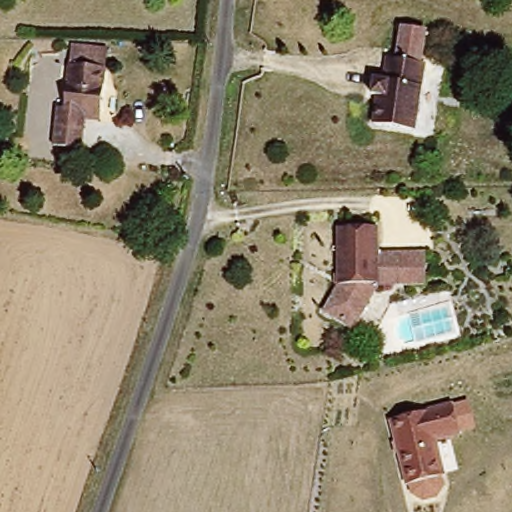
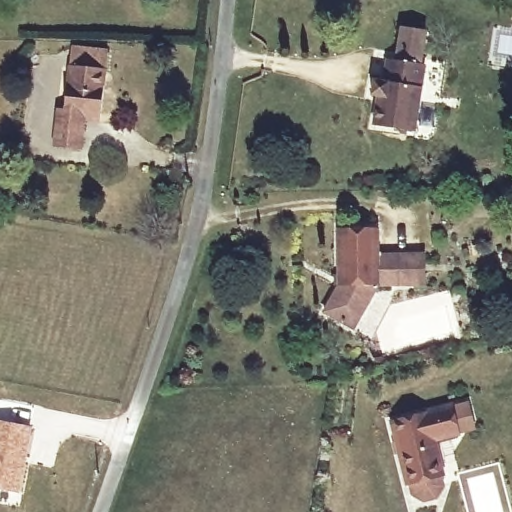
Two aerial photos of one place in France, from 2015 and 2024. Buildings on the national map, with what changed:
unchanged [(414,136),(372,130),(377,101),(371,100),(373,84),(383,86),(387,64),(394,65),(399,34),(425,38),(420,69),(424,69),(414,136)]
unchanged [(85,112),(80,149),(52,146),(57,108),(64,109),(69,64),(70,49),(105,53),(104,68),(100,114),(85,112)]
unchanged [(354,328),(325,312),(340,285),(340,228),(378,228),(379,255),(399,255),(424,255),(424,285),(399,285),(379,285),(354,328)]
unchanged [(479,431),(440,441),(447,475),(442,477),(445,489),(439,497),(424,501),(415,495),(411,484),(405,485),(390,419),(470,398),(479,431)]
new [(0,488),(0,423),(32,427),(19,491),(0,488)]

